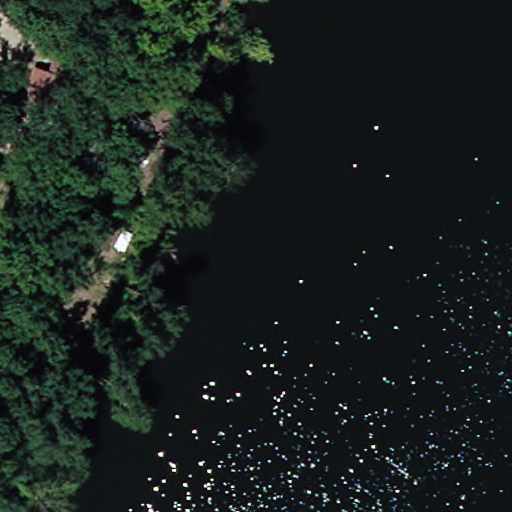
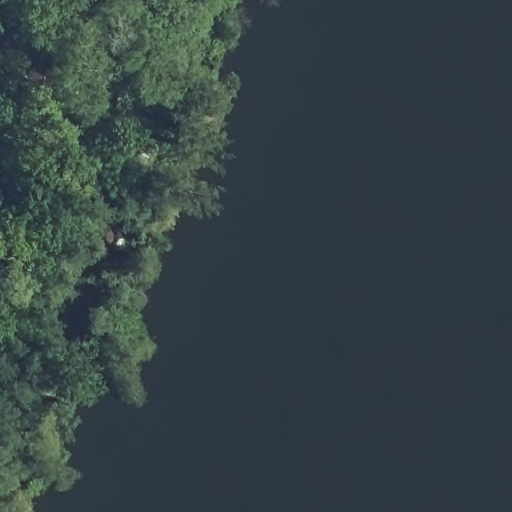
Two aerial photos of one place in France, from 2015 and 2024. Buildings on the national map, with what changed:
unchanged [(29,170),(48,115),(55,90),(90,102),(81,126),(67,121),(49,176),(29,170)]

